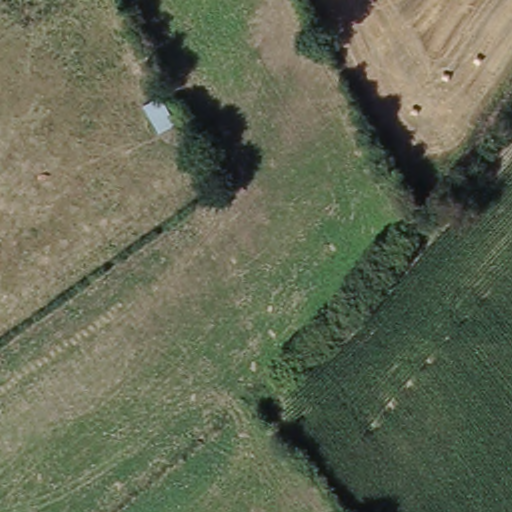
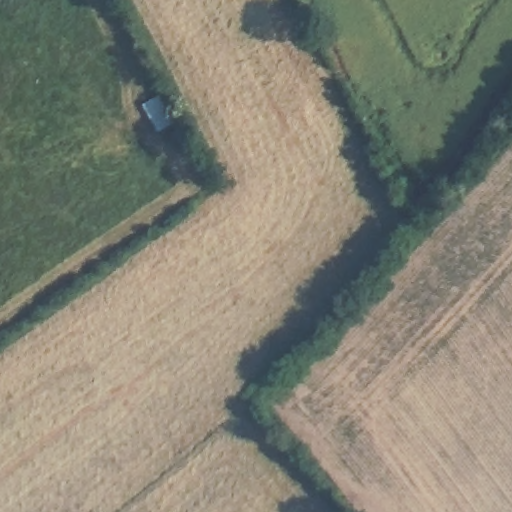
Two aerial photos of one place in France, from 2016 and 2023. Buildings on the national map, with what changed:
unchanged [(140,101),(160,91),(175,121),(155,130),(140,101)]

